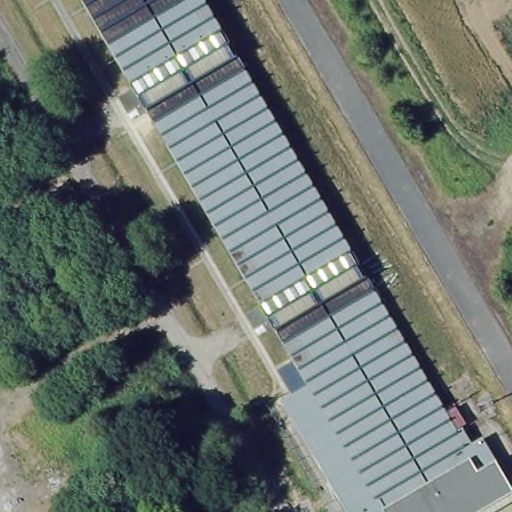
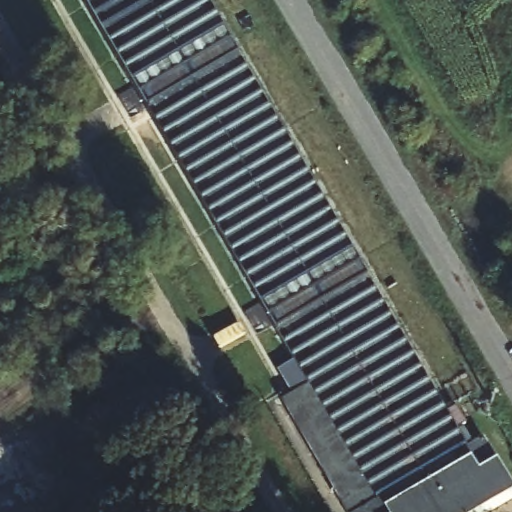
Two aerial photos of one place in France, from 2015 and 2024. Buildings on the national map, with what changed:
unchanged [(248,69),(367,276),(384,299),(473,447),(485,440),(495,463),(512,486),(512,493),(478,512),(348,512),(284,401),(309,385),(275,324),(162,131),(147,107),(84,0),(207,0),(237,54),(248,69)]

